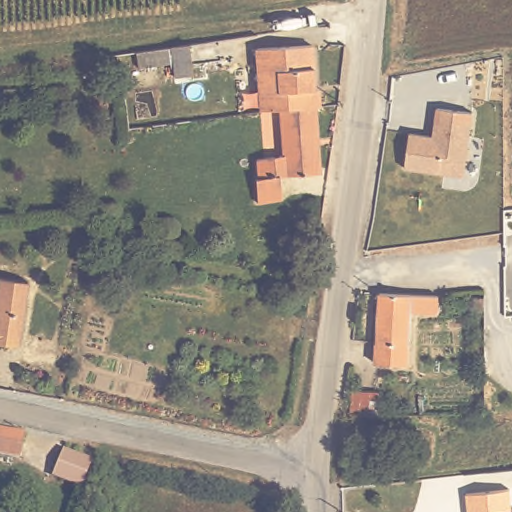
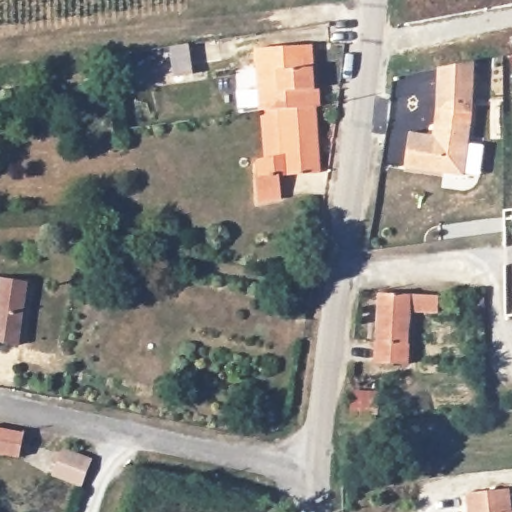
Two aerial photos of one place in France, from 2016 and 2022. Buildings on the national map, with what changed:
unchanged [(258,83),(256,43),(310,39),(314,102),(279,104),(264,105),(259,105),(258,83)]
unchanged [(193,74),(174,76),(170,46),(188,44),(193,74)]
new [(476,61),(472,112),(436,108),(438,67),(476,61)]
unchanged [(319,168),(279,171),(281,194),(257,198),(255,174),(257,174),(256,154),(283,150),(279,104),(314,102),(319,168)]
unchanged [(472,112),(463,175),(404,168),(409,132),(433,136),(436,108),(472,112)]
unchanged [(28,276),(18,340),(0,338),(0,273),(28,276)]
unchanged [(407,359),(374,358),(378,288),(438,291),(438,308),(410,306),(407,359)]
unchanged [(19,457),(0,454),(0,428),(24,433),(19,457)]
unchanged [(81,486),(51,475),(62,448),(92,459),(81,486)]
unchanged [(474,488),(512,485),(512,512),(476,512),(474,488)]

